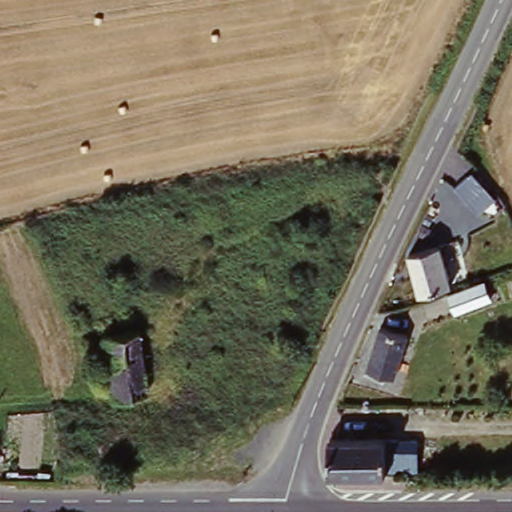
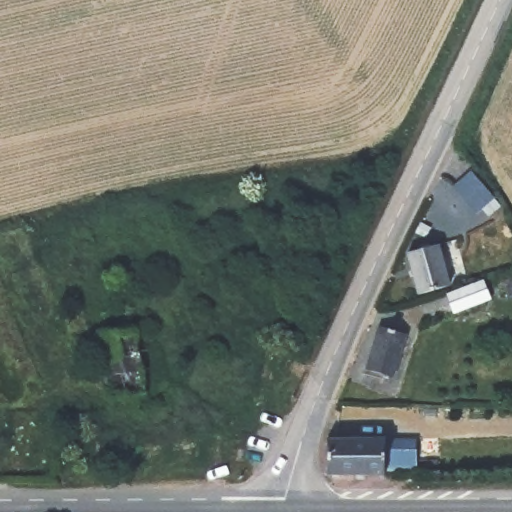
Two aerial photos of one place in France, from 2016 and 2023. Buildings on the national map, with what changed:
unchanged [(495,197),(477,213),(453,186),(472,170),(495,197)]
unchanged [(441,244),(452,283),(423,292),(411,253),(441,244)]
unchanged [(486,285),(493,302),(486,305),(458,316),(452,299),(480,287),(486,285)]
unchanged [(147,333),(117,333),(117,345),(97,347),(95,312),(145,306),(147,333)]
unchanged [(382,326),(410,335),(396,376),(368,368),(382,326)]
unchanged [(152,395),(123,399),(117,345),(117,333),(147,333),(152,395)]
unchanged [(387,435),(387,470),(331,471),(332,437),(387,435)]

